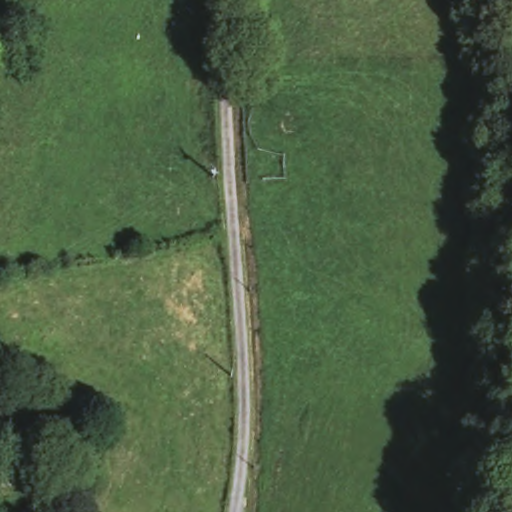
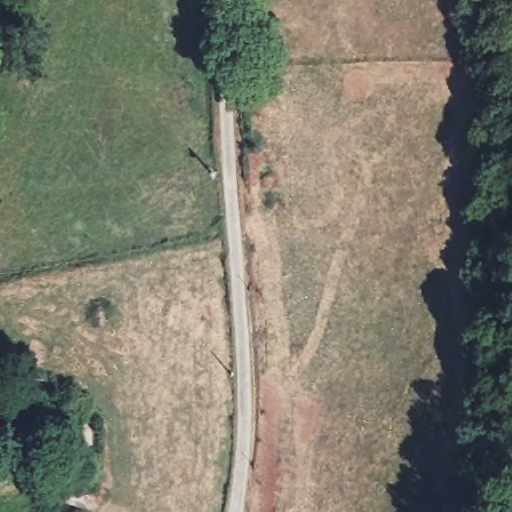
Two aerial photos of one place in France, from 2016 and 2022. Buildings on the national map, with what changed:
unchanged [(10,498),(0,497),(0,462),(13,462),(10,498)]

